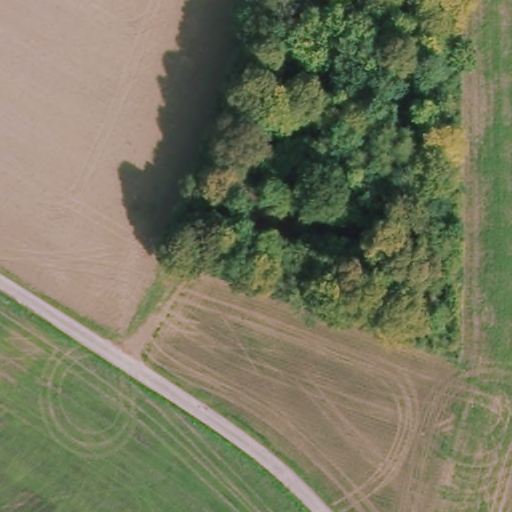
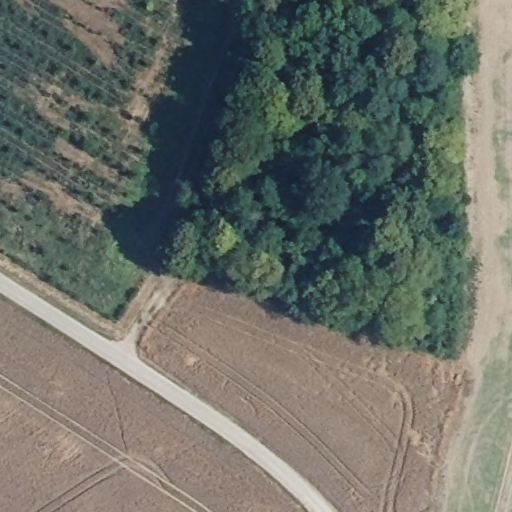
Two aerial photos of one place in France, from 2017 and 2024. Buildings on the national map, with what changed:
unchanged [(228,205),(218,234),(183,218),(194,183),(228,205)]

